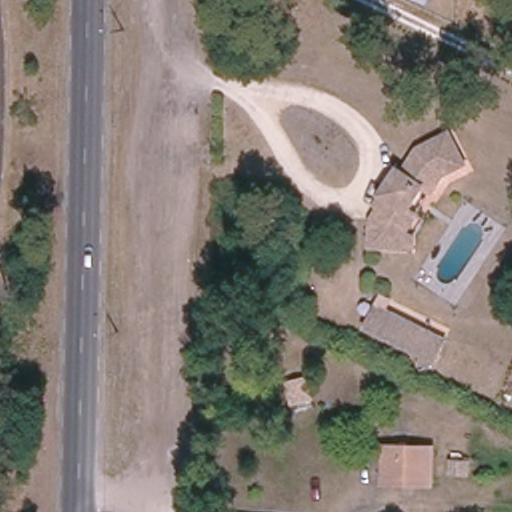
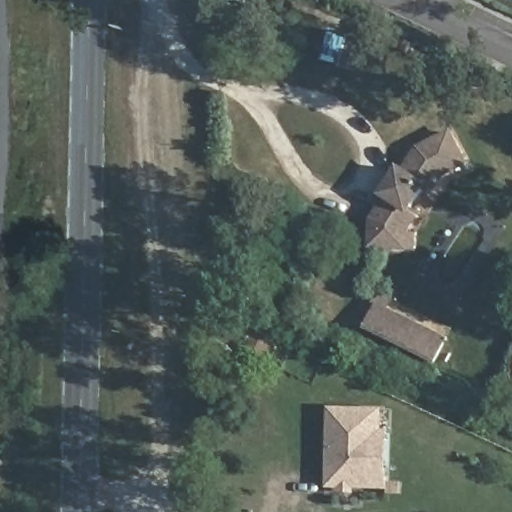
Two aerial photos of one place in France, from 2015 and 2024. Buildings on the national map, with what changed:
unchanged [(371,224),(413,151),(448,127),(472,165),(450,180),(418,227),(417,246),(370,253),(371,224)]
new [(225,236),(252,238),(251,257),(225,256),(225,236)]
unchanged [(241,264),(277,266),(277,299),(240,297),(241,264)]
unchanged [(381,297),(457,336),(439,364),(366,333),(381,297)]
new [(380,405),(383,429),(388,429),(388,493),(326,493),(329,405),(380,405)]
demolished [(437,447),(434,489),(380,488),(381,445),(437,447)]

